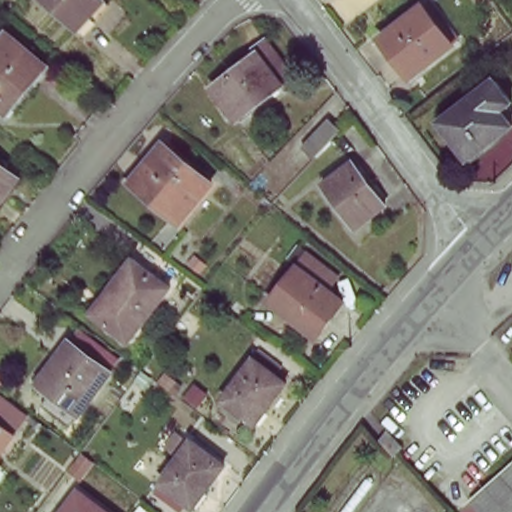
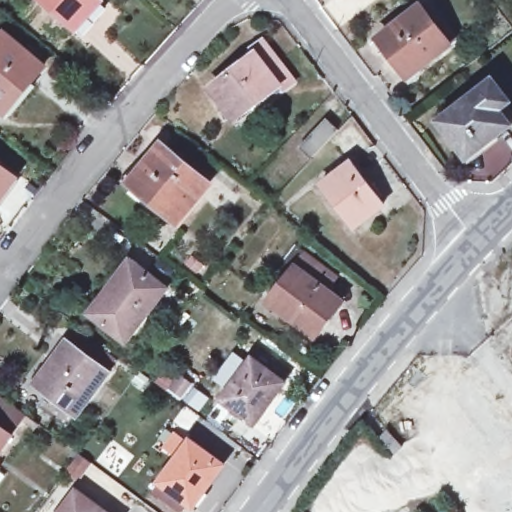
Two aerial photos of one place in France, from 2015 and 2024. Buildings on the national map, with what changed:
unchanged [(101,3),(76,32),(41,0),(98,0),(101,3)]
unchanged [(419,5),(451,46),(410,78),(378,37),(419,5)]
unchanged [(5,33),(45,68),(33,82),(30,80),(3,111),(0,108),(0,39),(5,33)]
unchanged [(247,64),(242,58),(255,48),(288,91),(275,101),(271,96),(228,130),(202,98),(247,64)]
unchanged [(492,74),(510,97),(499,106),(509,121),(467,154),(437,117),(492,74)]
unchanged [(326,121),(337,131),(310,160),(299,150),(326,121)]
unchanged [(155,163),(150,160),(162,146),(209,185),(176,225),(132,189),(155,163)]
unchanged [(352,163),(385,205),(356,228),(324,185),(352,163)]
unchanged [(16,179),(0,199),(0,167),(16,179)]
unchanged [(307,258),(336,282),(326,295),(341,307),(314,341),(269,306),(307,258)]
unchanged [(129,260),(166,288),(125,341),(90,314),(129,260)]
unchanged [(69,345),(109,375),(79,416),(38,386),(69,345)]
unchanged [(252,356),(286,380),(255,424),(221,399),(252,356)]
unchanged [(403,445),(392,455),(378,441),(389,430),(403,445)]
unchanged [(8,438),(0,448),(0,432),(8,438)]
unchanged [(189,440),(224,466),(194,508),(158,482),(189,440)]
demolished [(512,463),(512,512),(474,512),(467,504),(512,463)]
unchanged [(100,512),(59,512),(73,493),(100,512)]

